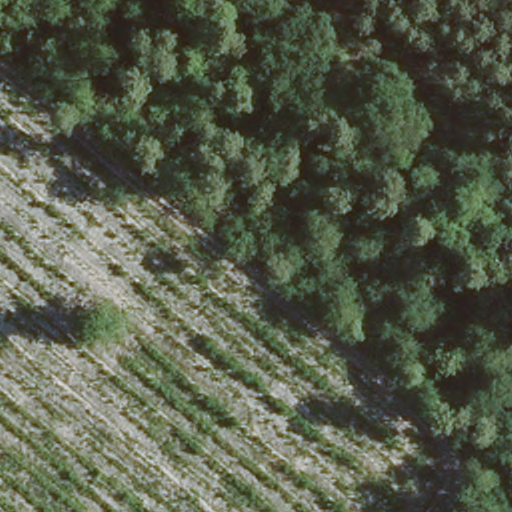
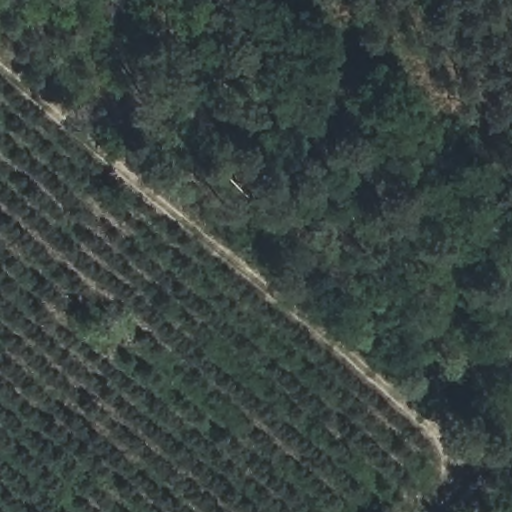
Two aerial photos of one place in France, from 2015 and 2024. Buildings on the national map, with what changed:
[]

